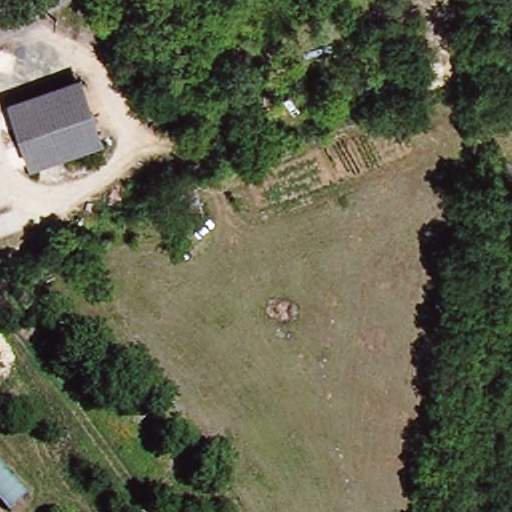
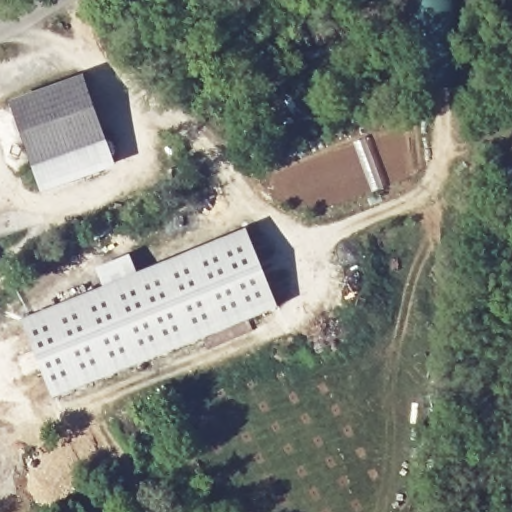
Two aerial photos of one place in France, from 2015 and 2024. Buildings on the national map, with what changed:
unchanged [(22,164),(5,105),(75,83),(94,142),(22,164)]
new [(277,310),(54,398),(21,320),(245,231),(277,310)]
unchanged [(0,466),(22,491),(2,512),(0,510),(0,466)]

